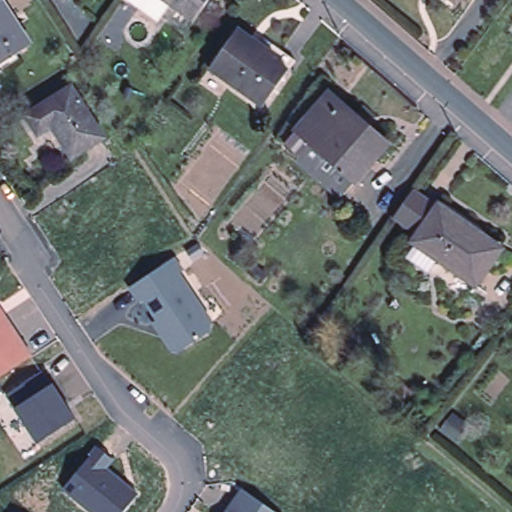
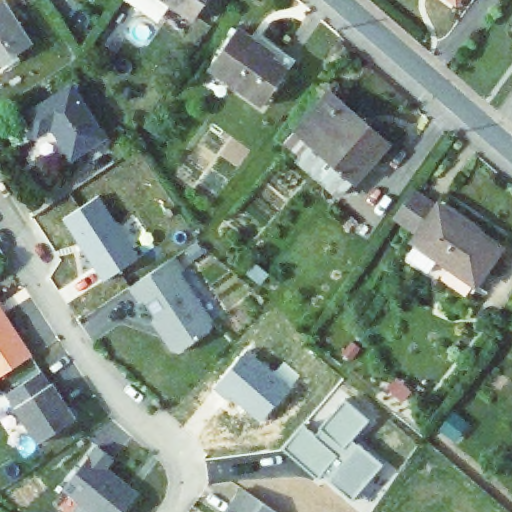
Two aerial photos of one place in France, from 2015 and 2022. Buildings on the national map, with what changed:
unchanged [(0,64),(0,0),(1,0),(30,45),(0,64)]
unchanged [(158,21),(128,0),(166,0),(171,3),(158,21)]
unchanged [(171,3),(166,0),(208,0),(194,19),(171,3)]
unchanged [(454,0),(458,0),(456,1),(454,0)]
unchanged [(265,47),(269,41),(295,59),(263,105),(209,68),(238,27),(265,47)]
unchanged [(72,85),(105,137),(72,158),(52,126),(38,135),(25,114),(72,85)]
unchanged [(365,129),(368,125),(388,143),(343,194),(285,142),(325,95),(365,129)]
unchanged [(502,247),(476,284),(413,240),(418,233),(400,221),(395,217),(415,190),(420,194),(437,206),(439,203),(502,247)]
unchanged [(186,269),(182,272),(213,321),(209,336),(182,352),(169,350),(151,322),(155,319),(145,301),(140,304),(128,287),(176,254),(186,269)]
unchanged [(32,356),(13,368),(0,377),(0,307),(5,314),(32,356)]
new [(248,351),(291,389),(260,425),(215,388),(248,351)]
unchanged [(42,371),(50,385),(53,383),(63,398),(61,400),(67,410),(70,408),(76,419),(38,443),(6,394),(42,371)]
new [(370,422),(352,443),(382,466),(352,502),(327,483),(330,480),(323,474),(318,480),(282,451),(302,425),(316,437),(346,399),(370,422)]
unchanged [(465,421),(453,437),(440,428),(452,412),(465,421)]
unchanged [(123,512),(95,512),(65,488),(96,445),(116,460),(109,468),(138,492),(123,512)]
unchanged [(244,489),(277,512),(228,512),(244,489)]

